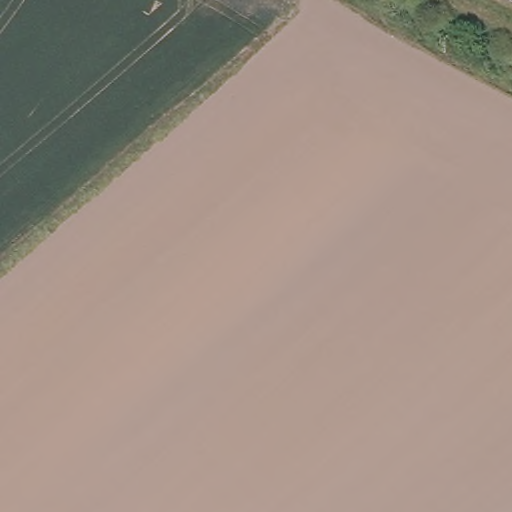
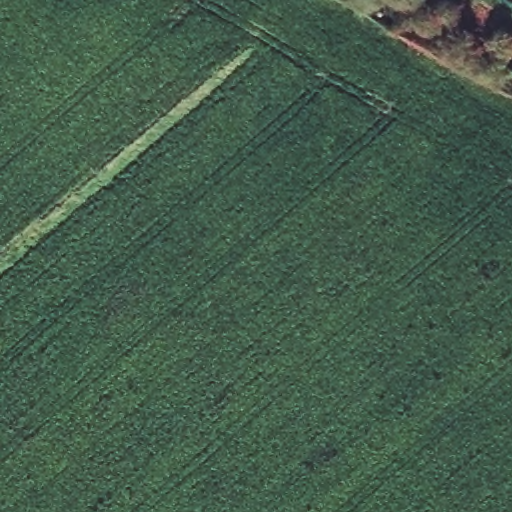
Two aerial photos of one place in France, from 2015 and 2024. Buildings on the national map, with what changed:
[]

